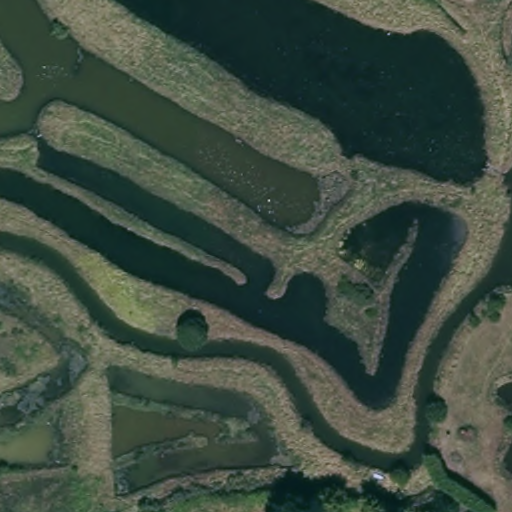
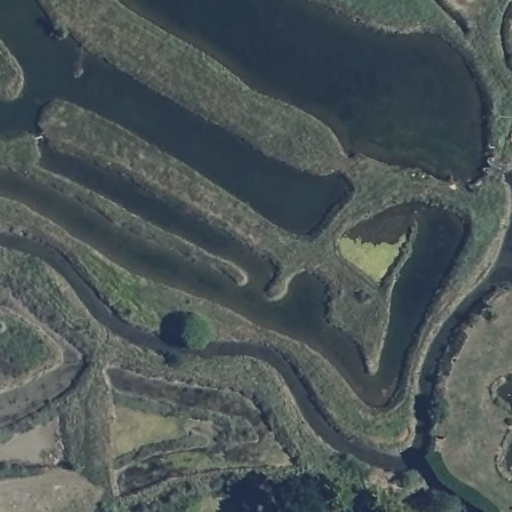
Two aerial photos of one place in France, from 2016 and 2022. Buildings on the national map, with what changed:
[]

